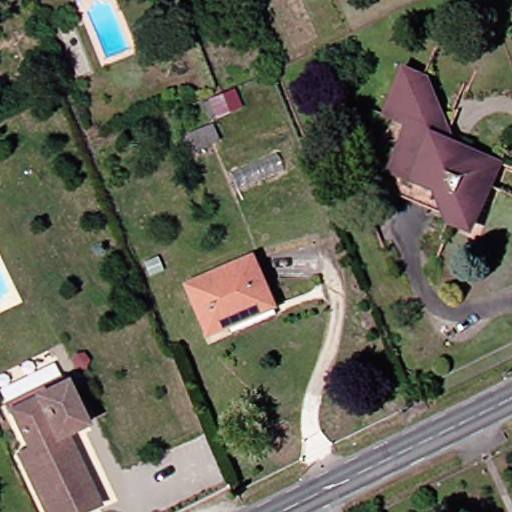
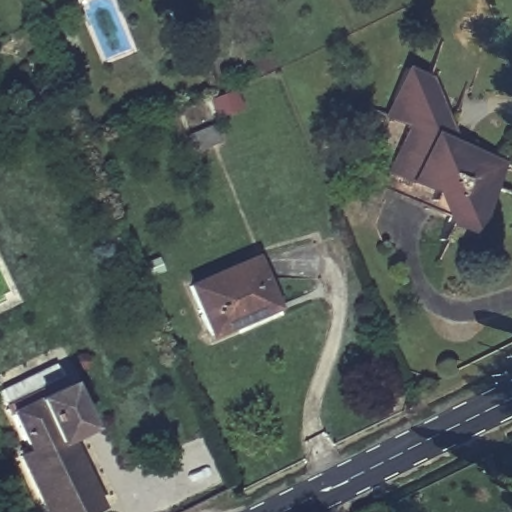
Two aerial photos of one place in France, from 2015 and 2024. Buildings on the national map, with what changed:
unchanged [(392,116),(412,68),(437,79),(458,131),(453,142),(464,146),(466,142),(473,145),(476,146),(472,156),(499,167),(492,183),(500,186),(483,225),(460,216),(466,202),(441,192),(444,185),(410,172),(405,160),(418,127),(392,116)]
unchanged [(221,140),(196,151),(189,134),(214,123),(221,140)]
unchanged [(279,308),(236,326),(213,336),(191,285),(257,258),(258,260),(266,277),(276,301),(278,305),(279,308)]
unchanged [(70,442),(103,512),(102,512),(44,512),(20,459),(29,455),(9,413),(2,397),(58,370),(88,434),(70,442)]

